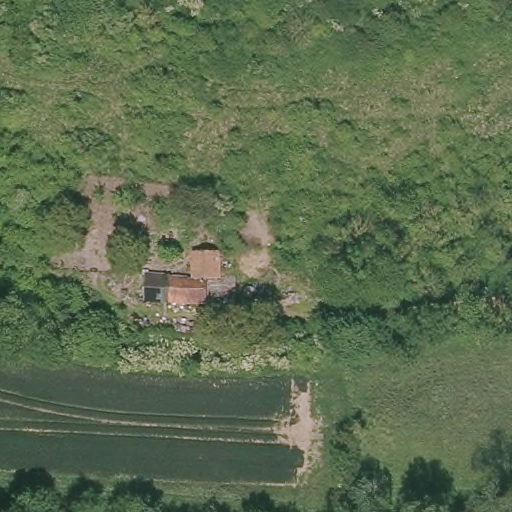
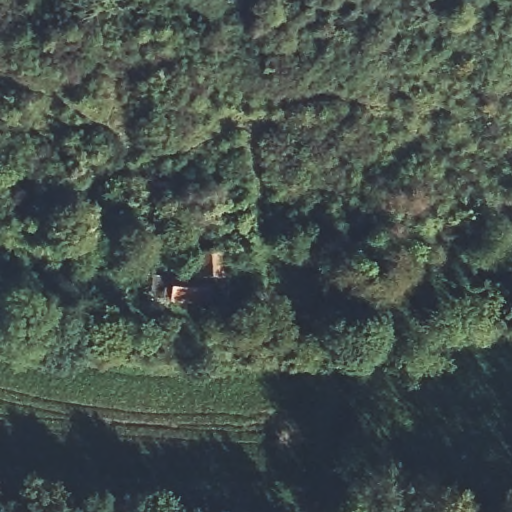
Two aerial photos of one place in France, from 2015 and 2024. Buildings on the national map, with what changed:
unchanged [(192,279),(194,253),(219,255),(218,281),(233,283),(232,304),(205,302),(205,307),(113,299),(115,274),(192,279)]

